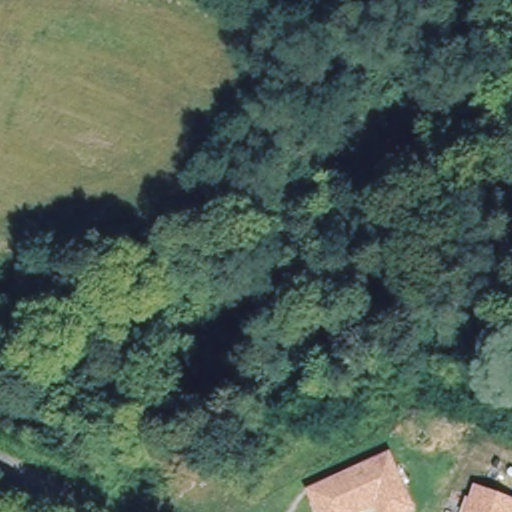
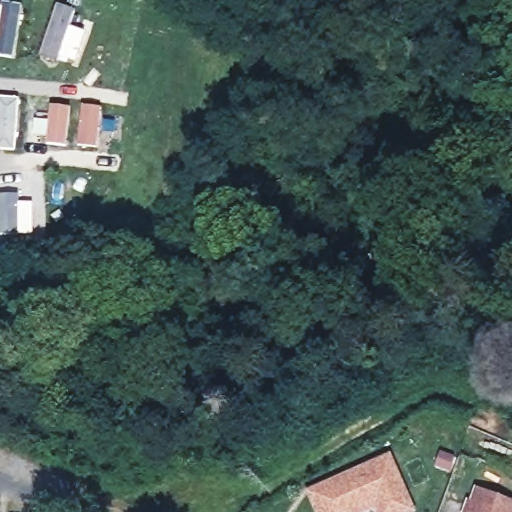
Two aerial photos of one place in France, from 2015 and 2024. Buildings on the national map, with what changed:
new [(3,1),(21,5),(13,58),(0,56),(0,6),(2,6),(3,1)]
new [(57,3),(76,8),(70,26),(86,31),(75,62),(60,57),(58,61),(38,55),(57,3)]
new [(15,151),(0,150),(0,98),(19,98),(15,151)]
new [(37,101),(57,102),(57,109),(73,110),(72,143),(54,147),(36,146),(37,101)]
new [(19,202),(33,202),(33,236),(0,236),(0,193),(18,192),(19,202)]
unchanged [(364,512),(317,512),(309,495),(350,476),(354,485),(378,474),(374,466),(388,459),(411,511),(410,512),(379,512),(373,499),(362,503),(366,511),(364,512)]
unchanged [(477,492),(512,505),(512,512),(471,512),(477,492)]

